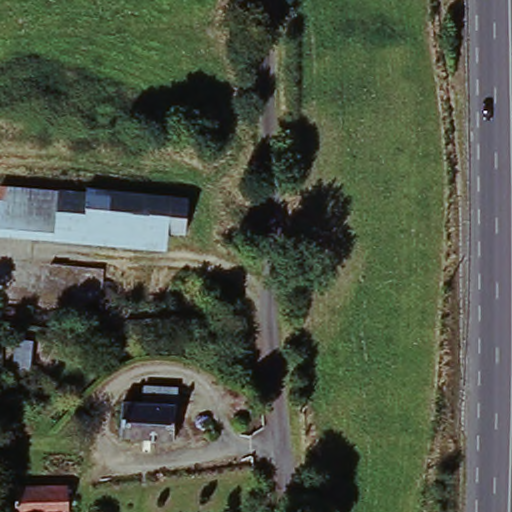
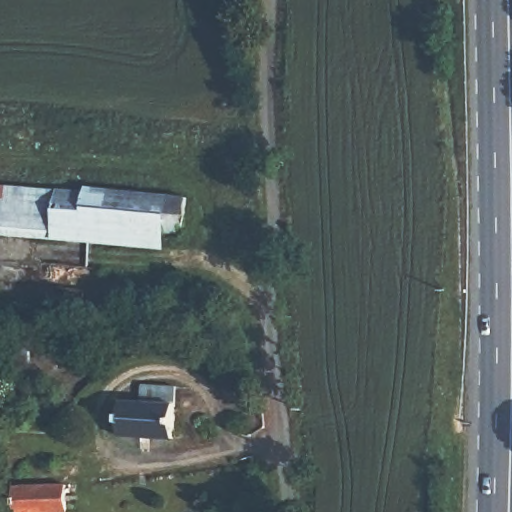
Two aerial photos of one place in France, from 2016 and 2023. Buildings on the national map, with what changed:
unchanged [(42,190),(43,225),(66,226),(67,243),(7,242),(6,189),(42,190)]
unchanged [(189,229),(173,229),(121,228),(66,226),(43,225),(42,190),(171,192),(189,193),(189,229)]
unchanged [(31,326),(29,353),(14,352),(13,325),(31,326)]
unchanged [(177,448),(126,442),(128,410),(151,413),(154,393),(180,396),(179,417),(177,448)]
unchanged [(69,490),(69,512),(18,512),(18,488),(69,490)]

